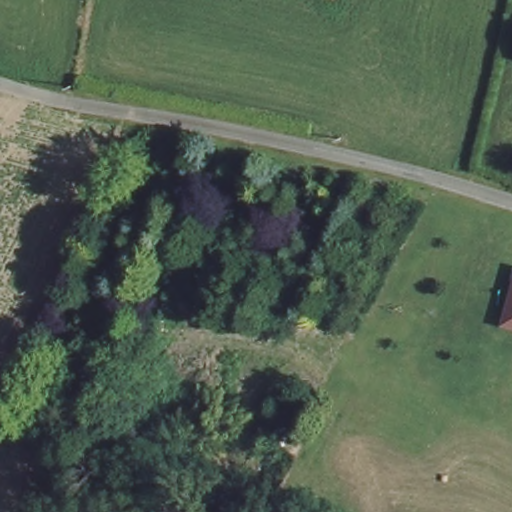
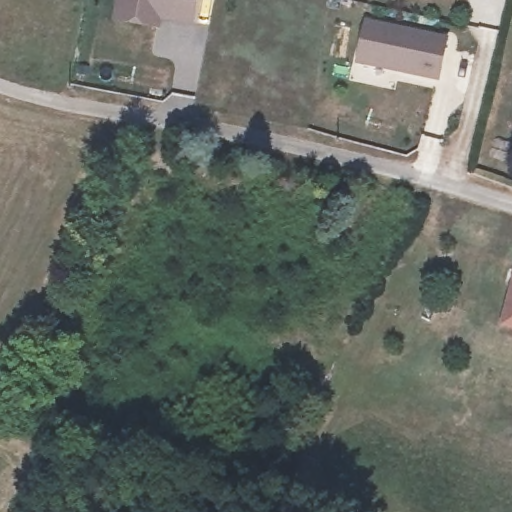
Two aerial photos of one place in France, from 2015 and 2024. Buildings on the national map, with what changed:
new [(200,0),(195,26),(163,21),(161,29),(113,21),(117,0),(200,0)]
new [(355,63),(365,18),(448,36),(439,80),(355,63)]
unchanged [(507,323),(512,297),(512,324),(507,323)]

